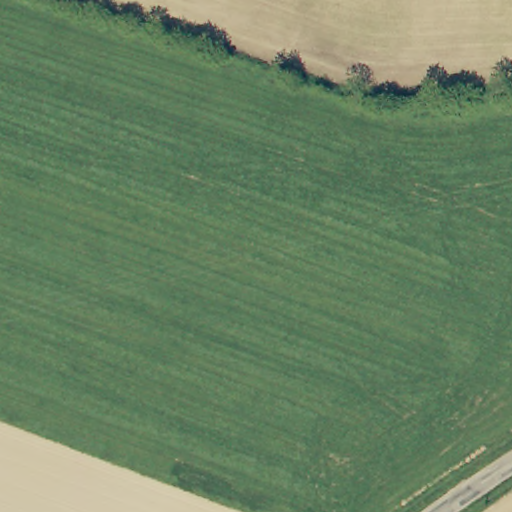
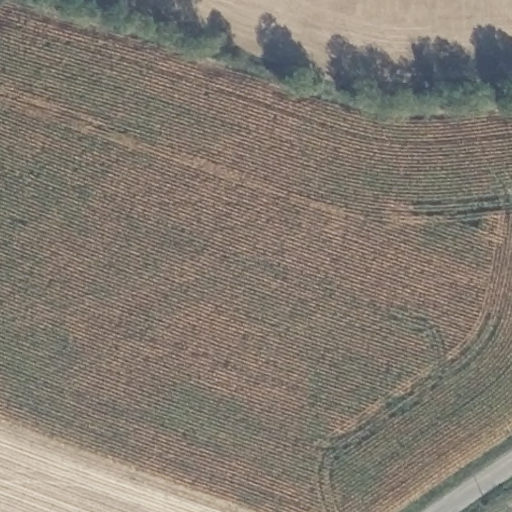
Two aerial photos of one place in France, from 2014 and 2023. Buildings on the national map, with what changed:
[]

